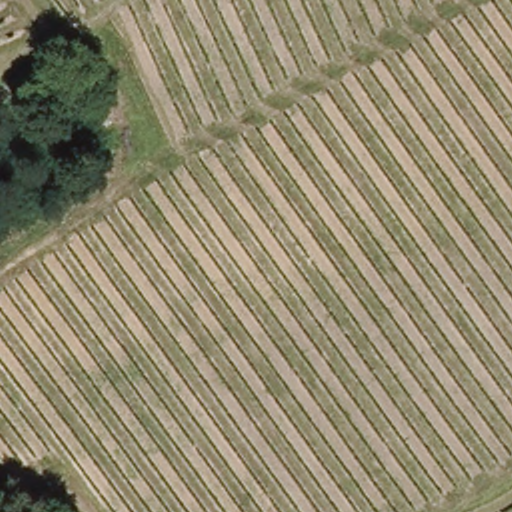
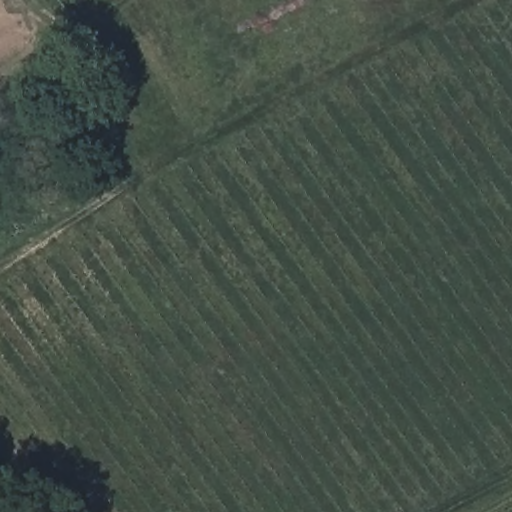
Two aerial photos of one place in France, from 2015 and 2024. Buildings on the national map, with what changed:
[]

